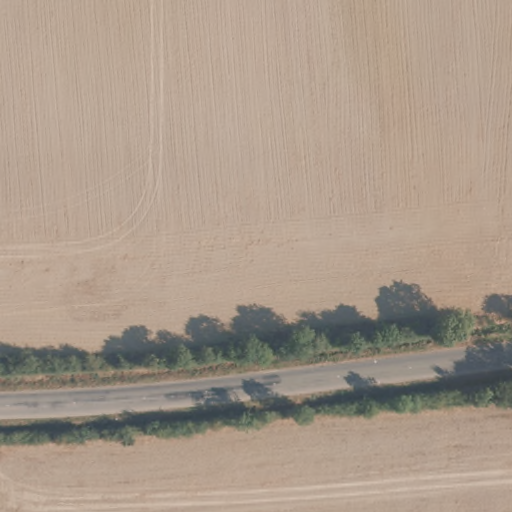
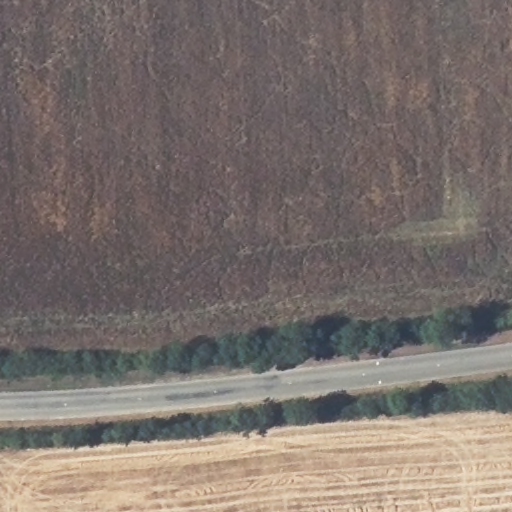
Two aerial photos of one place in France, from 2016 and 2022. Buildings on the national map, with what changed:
[]

